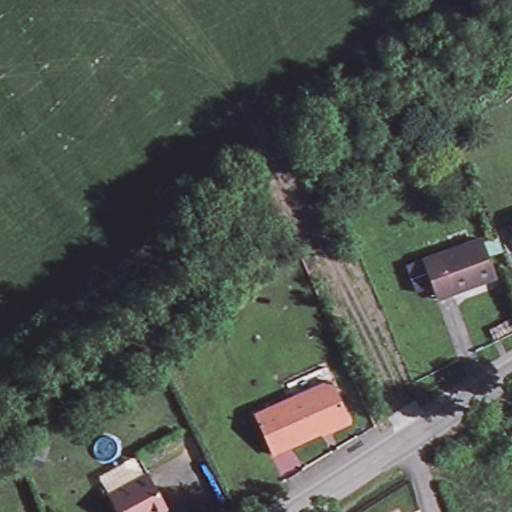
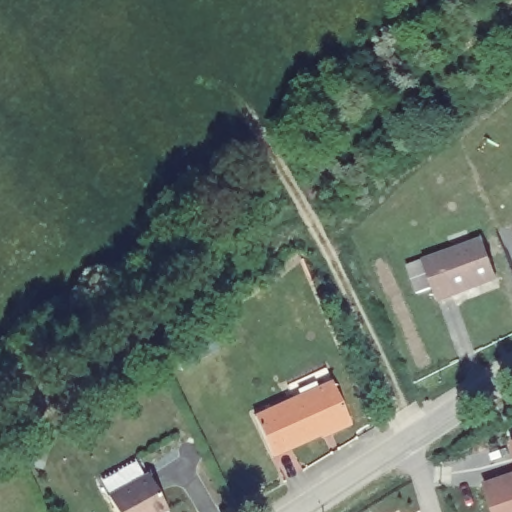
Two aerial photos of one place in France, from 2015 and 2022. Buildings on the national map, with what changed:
unchanged [(480,243),(493,279),(434,300),(420,263),(480,243)]
unchanged [(320,434),(319,432),(270,456),(252,417),(291,398),(330,379),(345,416),(347,421),(320,434)]
new [(510,443),(512,442),(512,450),(510,443)]
unchanged [(27,449),(35,452),(31,464),(22,462),(27,449)]
unchanged [(155,472),(173,507),(164,512),(123,512),(112,493),(155,472)]
new [(482,484),(512,474),(512,512),(492,512),(482,484)]

